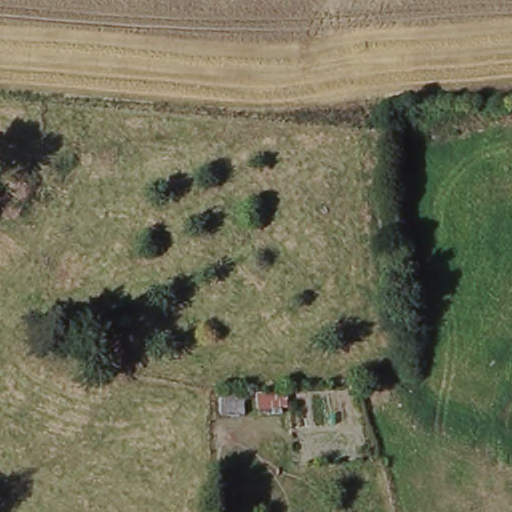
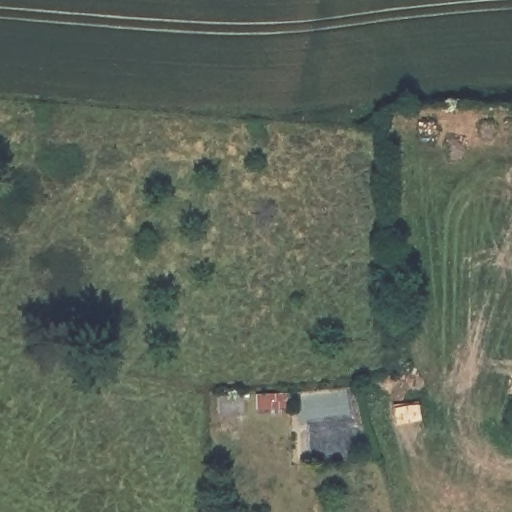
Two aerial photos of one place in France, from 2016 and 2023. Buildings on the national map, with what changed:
unchanged [(391,137),(388,123),(462,119),(466,136),(391,137)]
unchanged [(258,393),(291,395),(291,420),(258,417),(258,393)]
unchanged [(220,428),(223,394),(245,395),(249,420),(220,428)]

